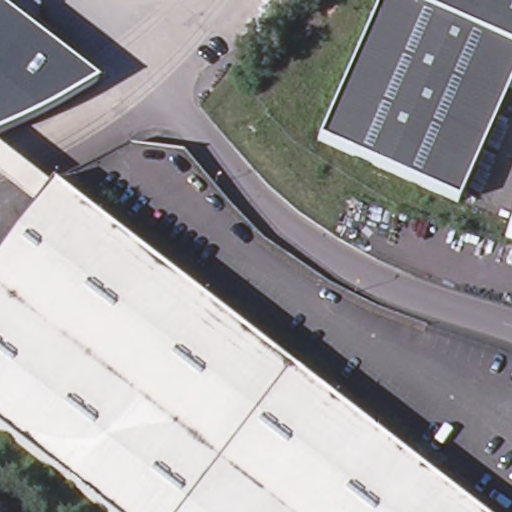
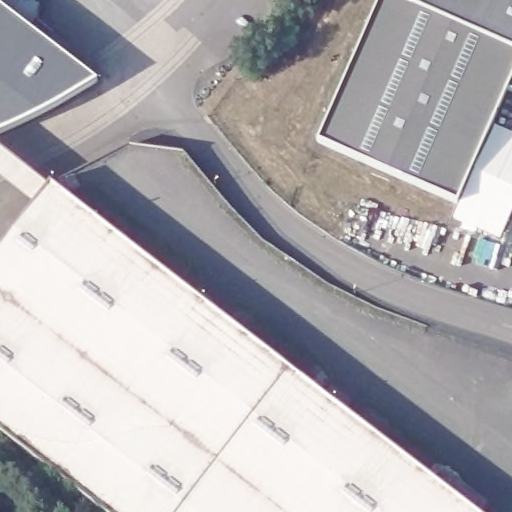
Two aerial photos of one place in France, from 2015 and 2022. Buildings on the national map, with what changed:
unchanged [(70,92),(51,103),(32,114),(11,124),(0,128),(0,0),(6,0),(62,43),(55,52),(91,80),(70,92)]
unchanged [(455,200),(315,136),(377,0),(411,0),(413,1),(512,46),(512,74),(507,86),(455,200)]
unchanged [(413,1),(413,0),(512,0),(512,46),(413,1)]
unchanged [(507,86),(512,74),(512,89),(507,86)]
unchanged [(28,204),(0,181),(0,148),(45,183),(28,204)]
unchanged [(45,183),(80,210),(0,315),(0,240),(28,204),(45,183)]
unchanged [(0,382),(0,315),(80,210),(113,235),(0,382)]
unchanged [(503,242),(512,212),(512,244),(503,242)]
unchanged [(0,436),(0,382),(113,235),(474,512),(99,512),(0,436)]

